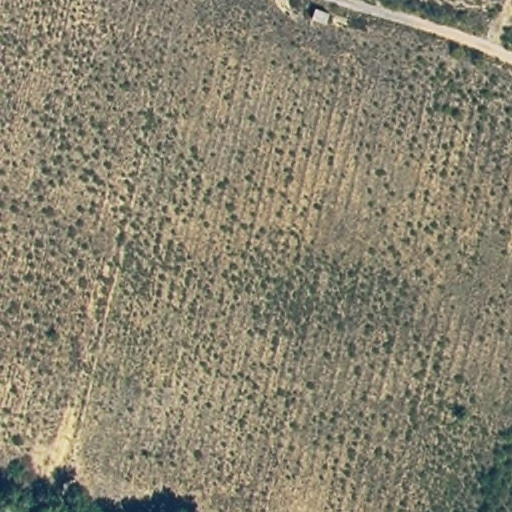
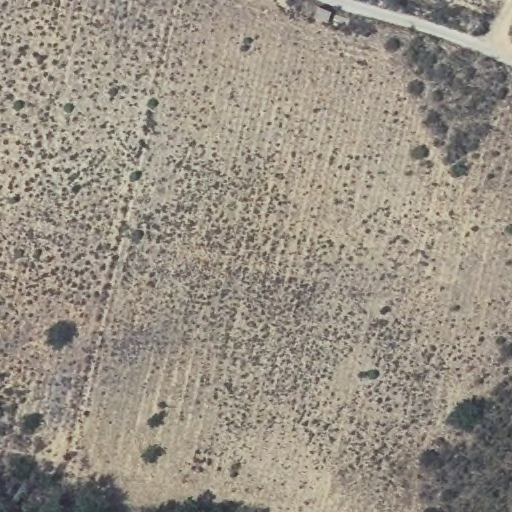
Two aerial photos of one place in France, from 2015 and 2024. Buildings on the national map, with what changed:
unchanged [(325,2),(325,16),(301,12),(302,2),(325,2)]

